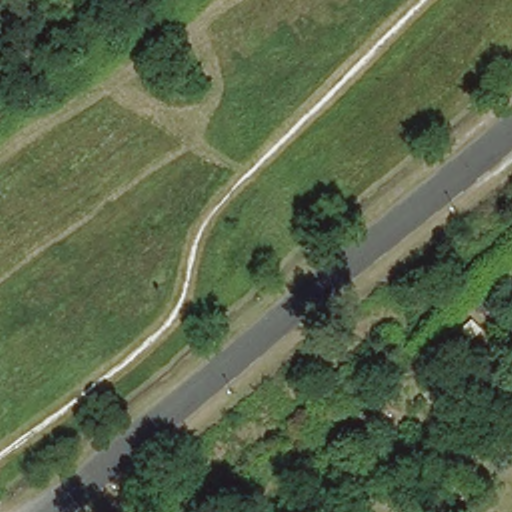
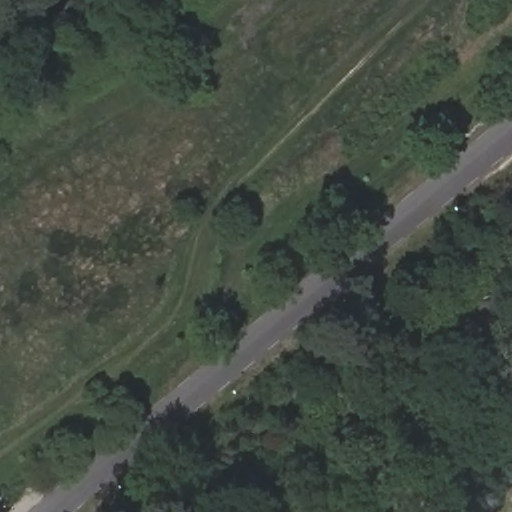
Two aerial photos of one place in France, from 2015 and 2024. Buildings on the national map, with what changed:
unchanged [(500,296),(502,308),(479,312),(476,301),(500,296)]
unchanged [(472,317),(484,327),(472,341),(461,331),(472,317)]

